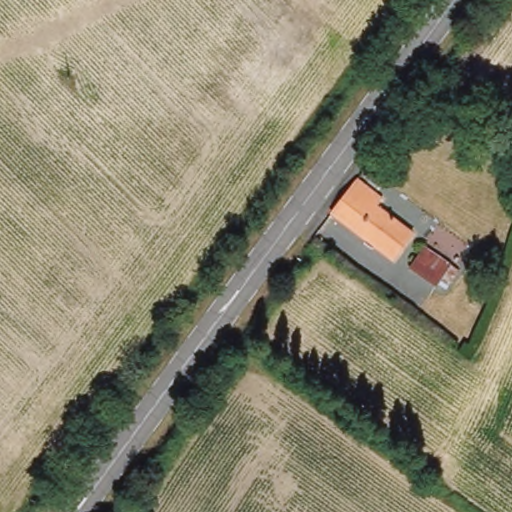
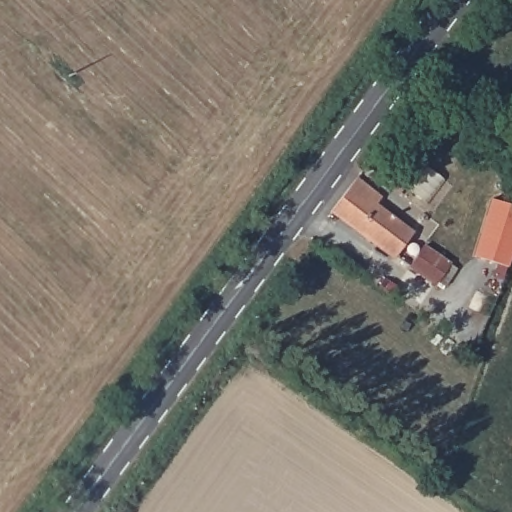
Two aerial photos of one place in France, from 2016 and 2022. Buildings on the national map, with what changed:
unchanged [(353,177),(380,197),(373,204),(408,230),(388,257),(371,242),(366,249),(359,242),(362,237),(327,212),(353,177)]
new [(512,206),(512,256),(503,283),(492,279),(496,264),(473,257),(491,200),(512,206)]
unchanged [(447,269),(433,288),(408,271),(423,251),(447,269)]

